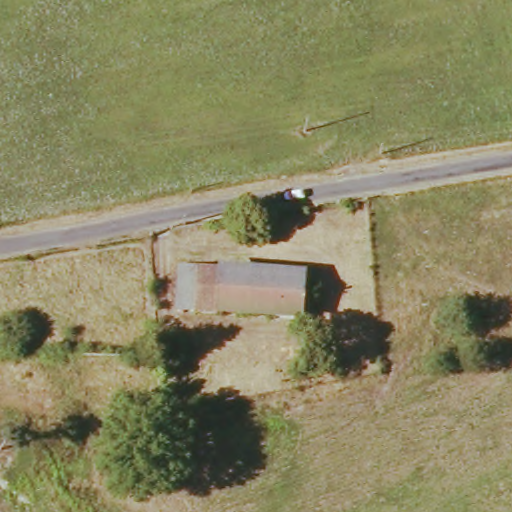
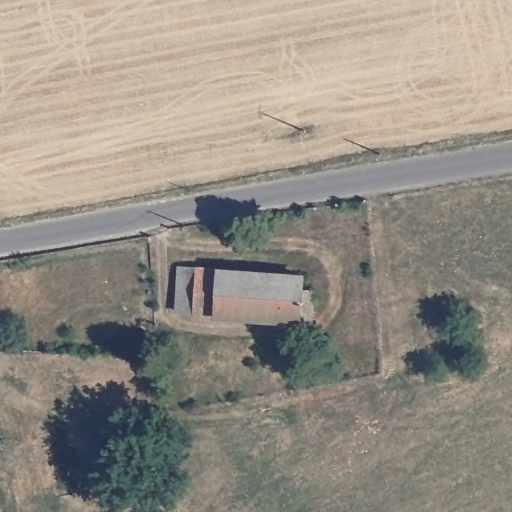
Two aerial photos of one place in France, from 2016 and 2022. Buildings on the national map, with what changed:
unchanged [(303,291),(315,292),(314,317),(302,316),(302,319),(196,310),(178,309),(182,266),(199,267),(304,273),(303,291)]

